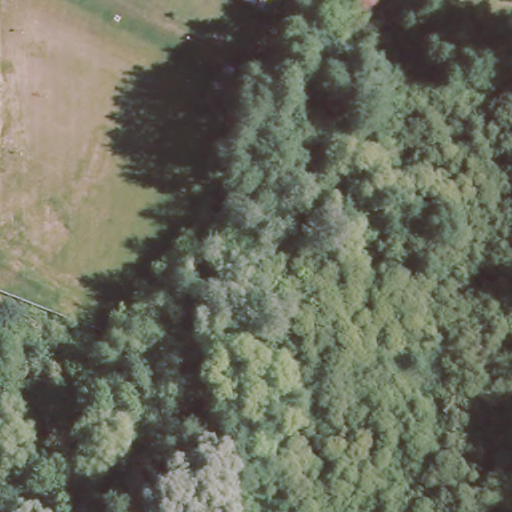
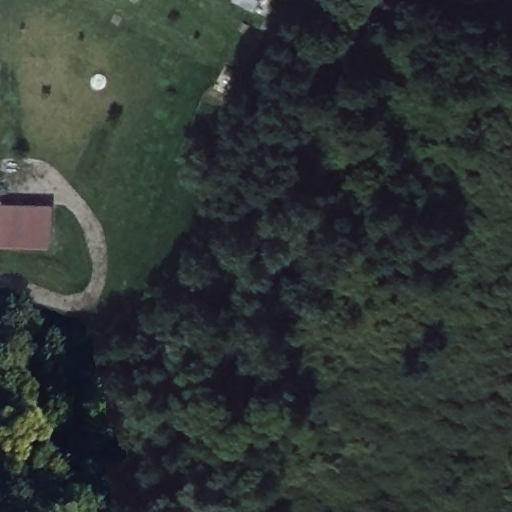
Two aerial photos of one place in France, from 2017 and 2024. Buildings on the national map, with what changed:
unchanged [(236,0),(258,0),(248,19),(231,11),(236,0)]
new [(52,243),(0,242),(1,203),(53,204),(52,243)]

